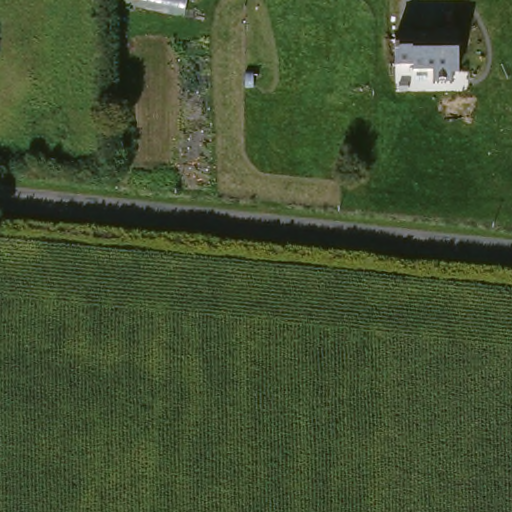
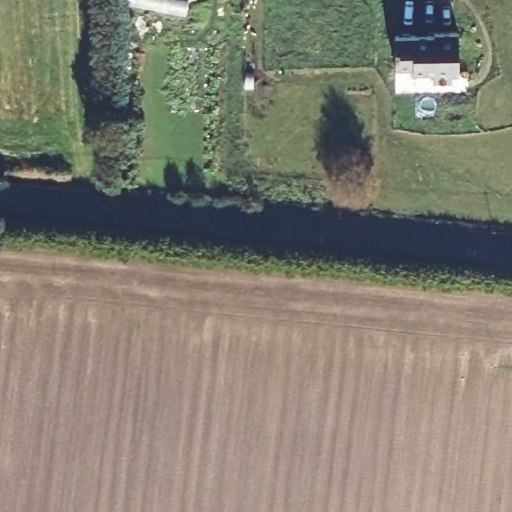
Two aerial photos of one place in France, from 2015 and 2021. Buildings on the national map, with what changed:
unchanged [(426,75),(406,75),(406,70),(389,71),(389,41),(426,41),(426,36),(453,36),(453,75),(445,75),(445,85),(425,85),(426,75)]

